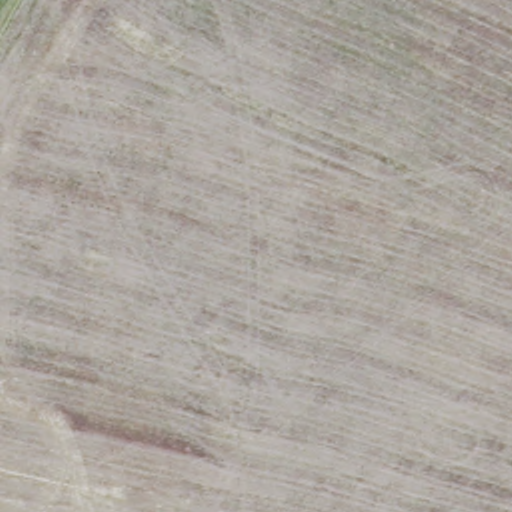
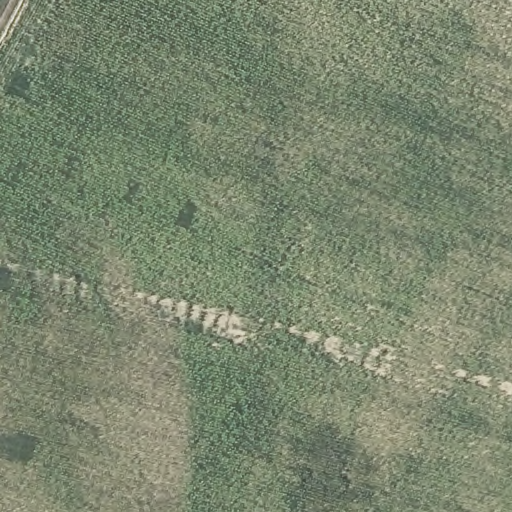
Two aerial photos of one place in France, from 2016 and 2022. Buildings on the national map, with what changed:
[]

